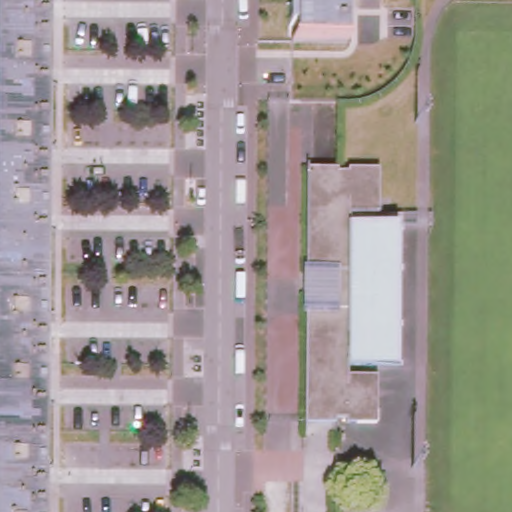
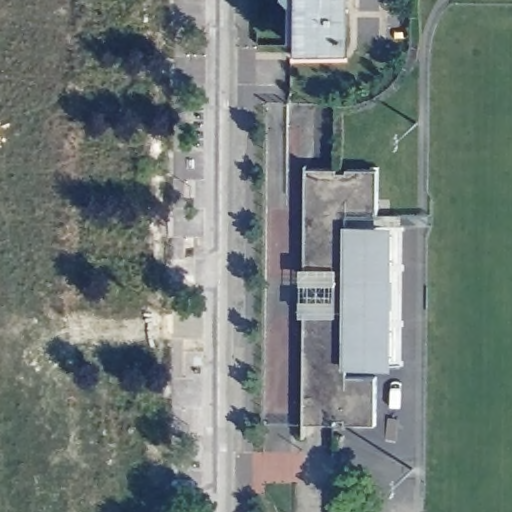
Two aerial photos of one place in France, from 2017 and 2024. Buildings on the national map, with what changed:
demolished [(0,0),(39,0),(34,512),(0,512),(0,0)]
unchanged [(356,5),(356,16),(359,18),(349,26),(348,40),(352,40),(352,43),(302,42),(298,42),(298,39),(301,39),(301,28),(294,27),(294,0),(359,0),(359,5),(356,5)]
unchanged [(344,366),(344,376),(374,377),(372,425),(341,425),(341,421),(331,421),(331,424),(301,423),(303,311),(303,295),(333,295),(333,273),(304,272),(305,168),(336,169),(336,172),(346,172),(346,169),(376,170),(376,215),(346,215),(346,226),(344,366)]
unchanged [(399,226),(397,367),(344,366),(346,226),(399,226)]

